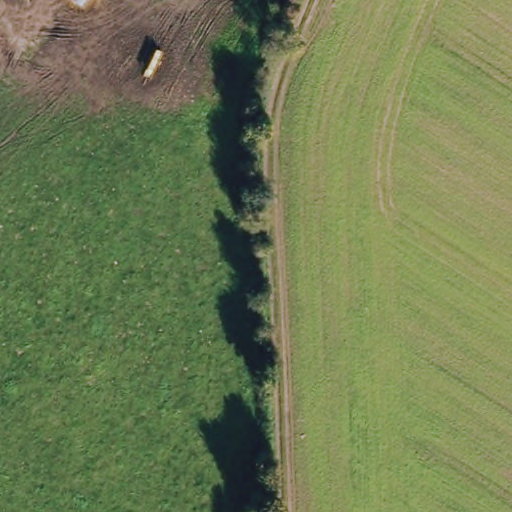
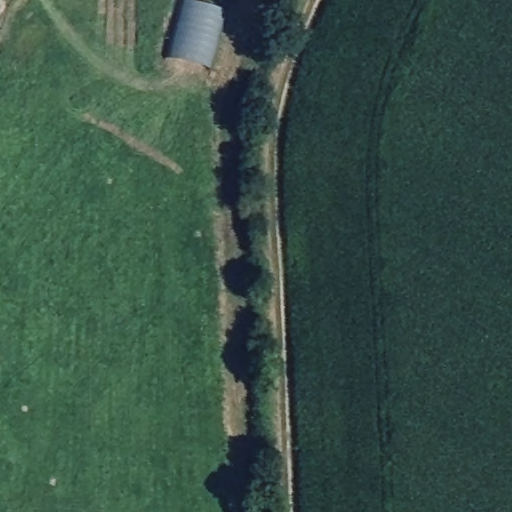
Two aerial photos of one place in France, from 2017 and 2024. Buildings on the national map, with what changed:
new [(183,0),(226,13),(210,72),(165,60),(181,0),(183,0)]

